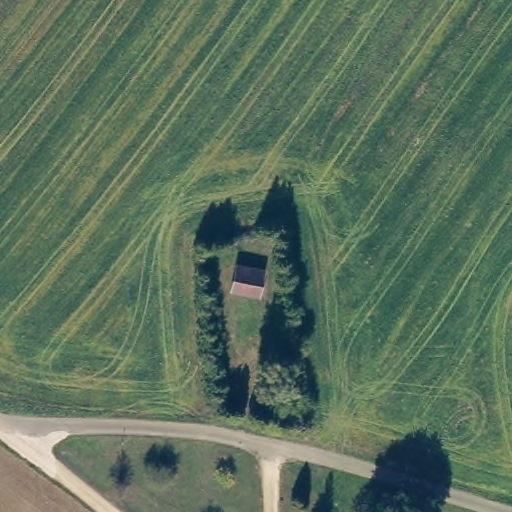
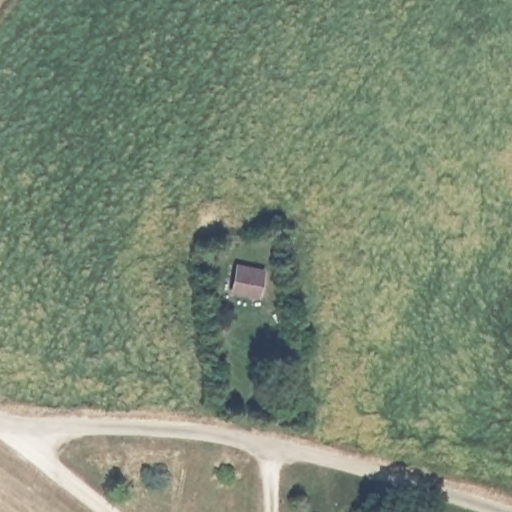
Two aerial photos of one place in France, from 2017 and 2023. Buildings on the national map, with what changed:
unchanged [(265,269),(260,300),(229,294),(236,263),(265,269)]

